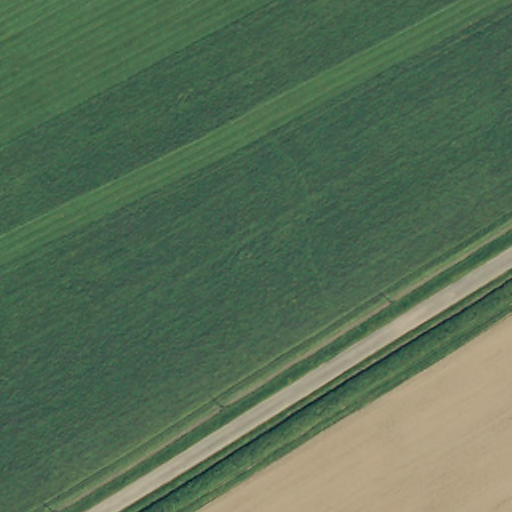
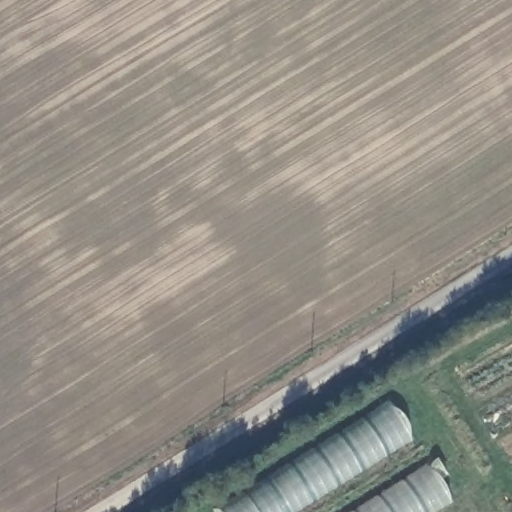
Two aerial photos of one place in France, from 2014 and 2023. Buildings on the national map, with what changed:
new [(218,509),(388,401),(411,440),(295,512),(220,512),(218,509)]
new [(428,466),(450,502),(434,512),(353,512),(428,466)]

